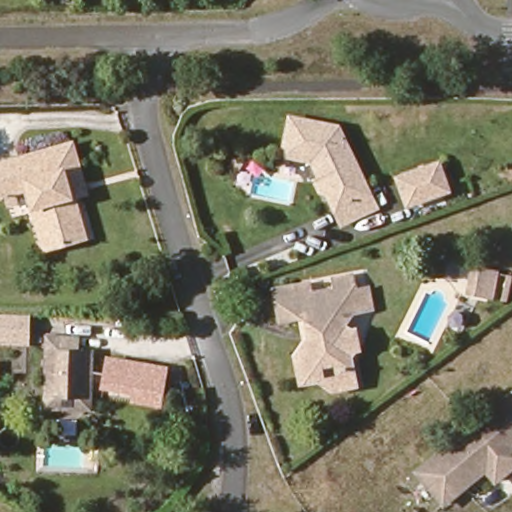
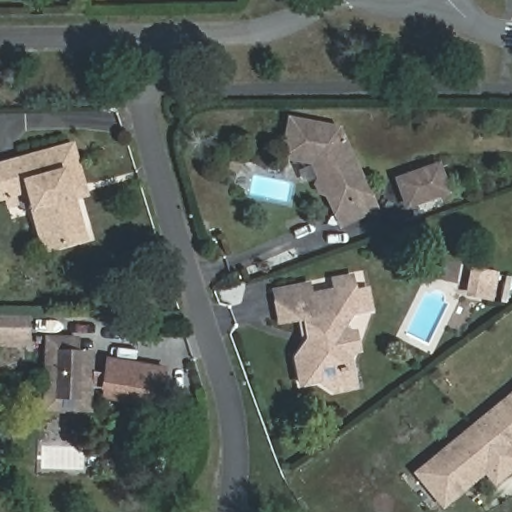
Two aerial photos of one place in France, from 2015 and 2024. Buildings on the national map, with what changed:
unchanged [(334,204),(327,189),(319,187),(315,179),(319,171),(312,156),(282,151),(290,113),(337,122),(368,187),(376,203),(342,219),(334,204)]
unchanged [(32,190),(17,194),(20,203),(13,205),(11,196),(3,198),(0,189),(0,165),(76,144),(87,184),(90,194),(78,198),(89,238),(65,244),(48,249),(42,226),(32,190)]
unchanged [(237,172),(228,168),(233,159),(241,163),(237,172)]
unchanged [(453,190),(413,205),(403,178),(443,164),(453,190)]
unchanged [(492,294),(468,288),(473,269),(497,274),(492,294)]
unchanged [(340,347),(347,382),(327,386),(312,375),(296,379),(290,352),(298,340),(293,315),(275,319),(269,287),(304,280),(306,290),(330,285),(328,275),(347,271),(350,286),(362,283),(366,303),(350,306),(336,328),(349,326),(353,345),(340,347)]
unchanged [(0,339),(0,314),(11,314),(10,339),(0,339)]
unchanged [(46,408),(46,383),(45,383),(46,337),(61,337),(80,338),(79,353),(93,353),(91,384),(90,384),(90,409),(46,408)]
unchanged [(164,408),(130,403),(131,394),(101,390),(101,377),(92,376),(93,353),(108,353),(170,368),(164,408)]
unchanged [(509,470),(473,426),(512,394),(512,468),(509,470)]
unchanged [(494,482),(484,471),(443,505),(416,473),(473,426),(509,470),(494,482)]

